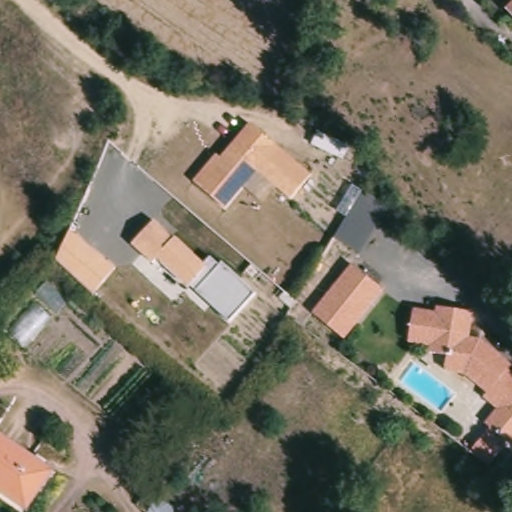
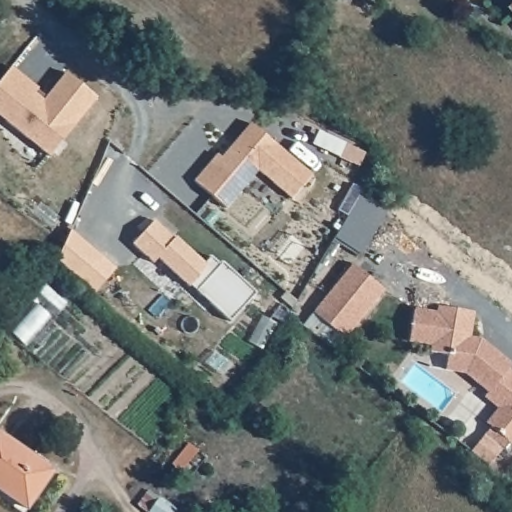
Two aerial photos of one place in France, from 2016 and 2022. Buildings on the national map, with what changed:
unchanged [(512,9),(512,18),(507,14),(512,9)]
new [(11,67),(38,89),(34,93),(43,100),(66,72),(97,97),(49,156),(0,117),(0,80),(11,67)]
unchanged [(192,182),(215,155),(221,159),(250,126),(311,175),(293,199),(256,172),(225,210),(192,182)]
unchanged [(335,237),(347,219),(337,211),(355,182),(389,207),(357,252),(335,237)]
unchanged [(186,286),(157,260),(151,265),(132,245),(155,222),(172,240),(175,236),(204,265),(211,257),(221,265),(222,262),(254,294),(227,321),(186,286)]
unchanged [(57,263),(71,230),(117,268),(93,296),(57,263)]
unchanged [(379,293),(341,341),(310,316),(347,268),(379,293)]
unchanged [(471,456),(483,440),(490,432),(485,429),(496,413),(482,403),(486,398),(465,377),(445,373),(428,370),(431,355),(432,348),(410,345),(415,313),(437,317),(438,311),(473,317),(468,342),(481,345),(503,361),(511,367),(507,371),(512,375),(512,450),(507,446),(502,455),(488,471),(472,457),(471,456)]
unchanged [(52,475),(26,512),(25,512),(0,494),(0,439),(52,475)]
unchanged [(172,466),(168,465),(185,444),(193,452),(175,475),(169,470),(172,466)]

